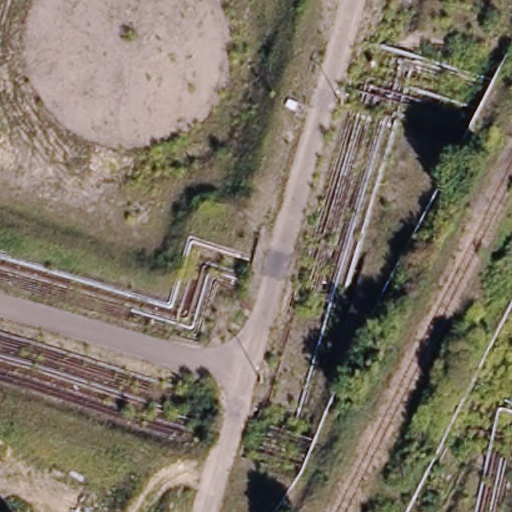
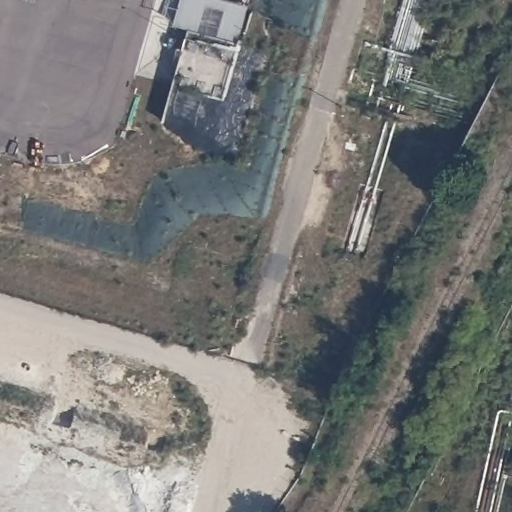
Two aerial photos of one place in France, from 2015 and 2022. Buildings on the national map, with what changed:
new [(189,28),(174,23),(180,0),(227,0),(249,6),(239,42),(242,42),(222,100),(175,84),(189,28)]

